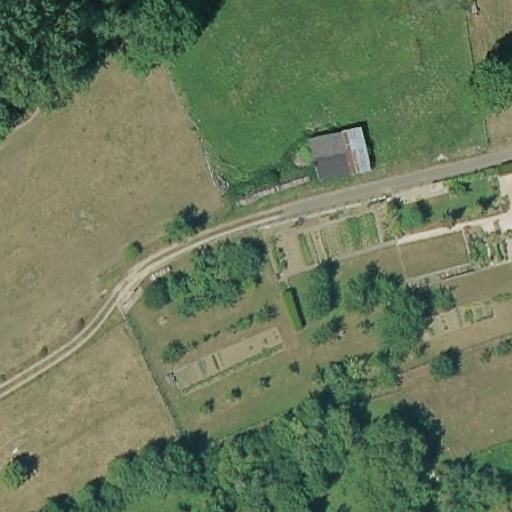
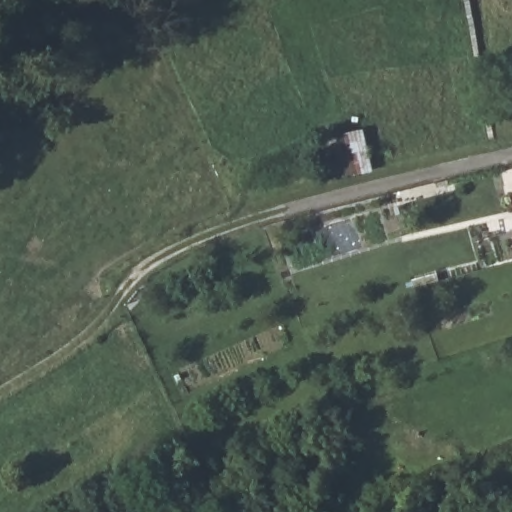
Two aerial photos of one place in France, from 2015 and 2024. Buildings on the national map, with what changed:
unchanged [(368,170),(316,180),(309,137),(362,129),(368,170)]

